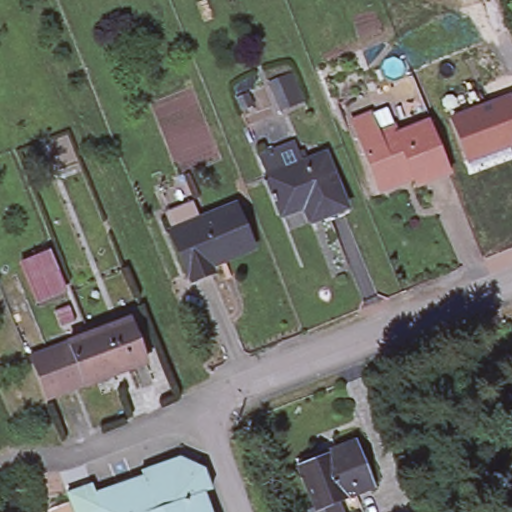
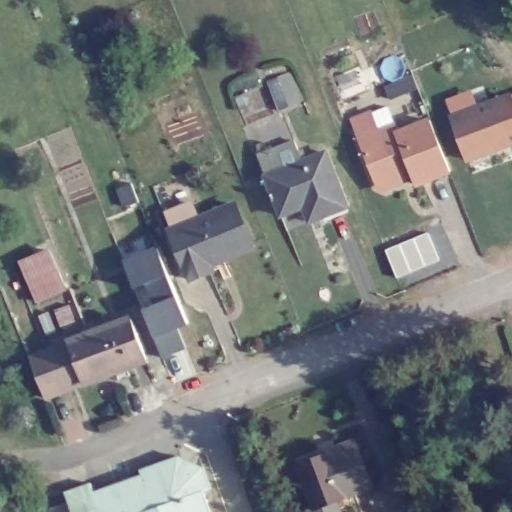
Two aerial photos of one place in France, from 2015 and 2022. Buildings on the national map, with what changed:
unchanged [(270,84),(287,77),(295,74),(302,92),(295,95),(277,102),(270,84)]
unchanged [(512,98),(512,149),(450,170),(449,165),(432,123),(510,94),(512,98)]
unchanged [(412,171),(383,182),(377,179),(358,133),(351,115),(370,107),(387,101),(393,119),(397,127),(429,115),(432,123),(449,165),(415,179),(412,171)]
unchanged [(317,217),(305,222),(298,207),(277,215),(272,203),(267,203),(265,195),(267,192),(261,176),(253,157),(270,150),(291,142),(299,161),(321,152),(342,207),(345,212),(320,223),(317,217)]
unchanged [(205,276),(185,285),(165,236),(170,234),(164,218),(188,208),(195,224),(230,210),(248,253),(217,265),(220,270),(205,276)]
new [(430,231),(443,262),(398,278),(387,251),(430,231)]
new [(162,243),(190,323),(179,326),(187,348),(160,357),(123,260),(162,243)]
unchanged [(52,247),(68,290),(37,304),(18,261),(52,247)]
unchanged [(122,324),(137,364),(101,378),(86,337),(122,324)]
unchanged [(86,337),(101,378),(73,388),(57,348),(86,337)]
unchanged [(57,348),(73,388),(50,397),(35,356),(57,348)]
unchanged [(370,486),(333,499),(313,506),(297,464),(293,457),(330,443),(332,448),(352,441),(370,486)]
unchanged [(68,501),(65,493),(90,483),(95,496),(140,476),(138,470),(177,456),(181,459),(193,464),(201,468),(208,488),(200,491),(208,512),(50,512),(48,508),(68,501)]
unchanged [(313,506),(333,499),(339,512),(309,512),(308,508),(313,506)]

